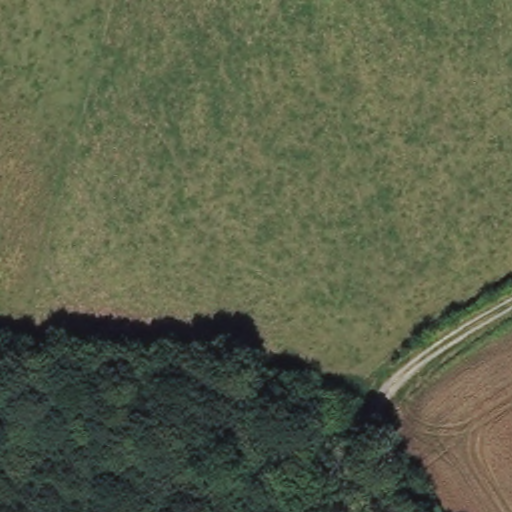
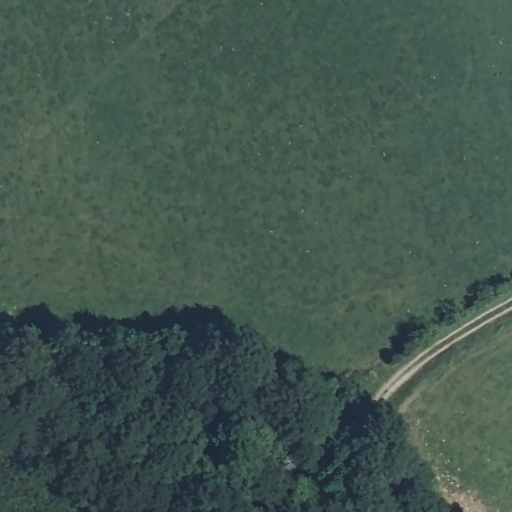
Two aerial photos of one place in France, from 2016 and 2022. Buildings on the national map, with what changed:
[]

